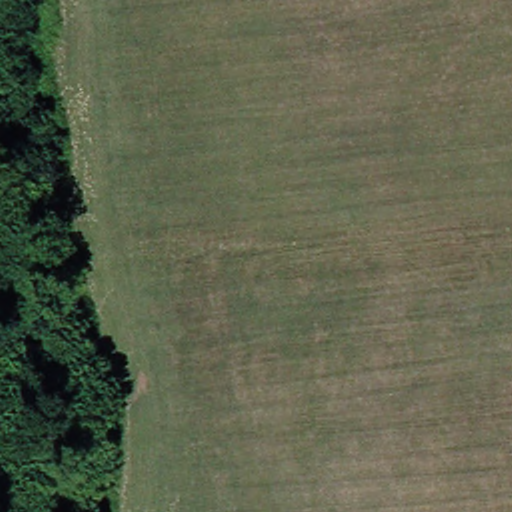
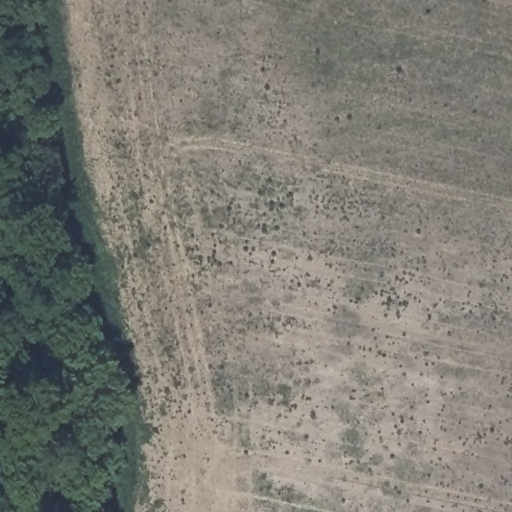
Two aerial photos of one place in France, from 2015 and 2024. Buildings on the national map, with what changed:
[]

